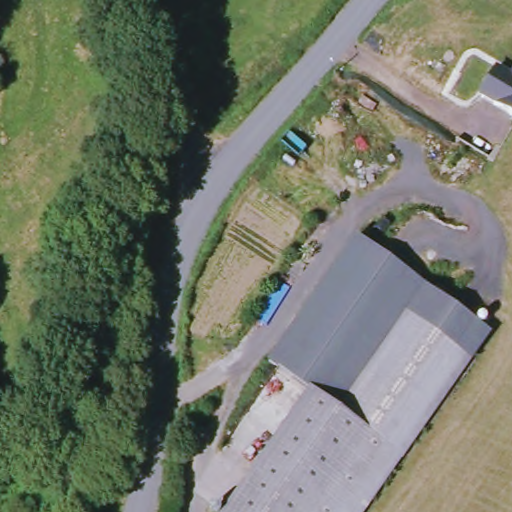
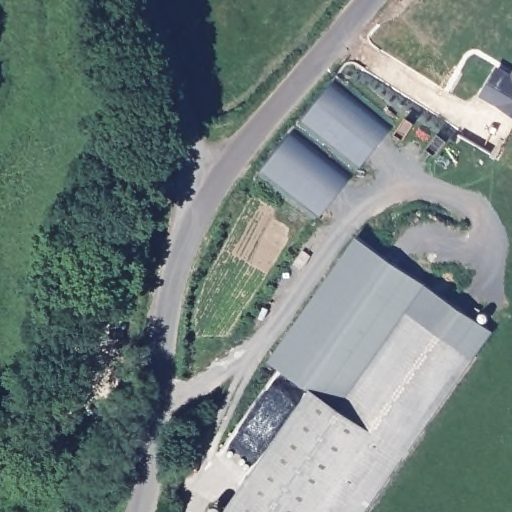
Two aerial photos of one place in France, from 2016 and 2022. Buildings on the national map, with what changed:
unchanged [(485,97),(499,72),(512,79),(512,113),(485,97)]
new [(392,127),(360,167),(300,121),(332,82),(392,127)]
new [(292,130),(350,177),(319,216),(262,170),(292,130)]
unchanged [(470,350),(360,512),(229,512),(315,390),(274,362),(361,237),(487,325),(470,350)]

